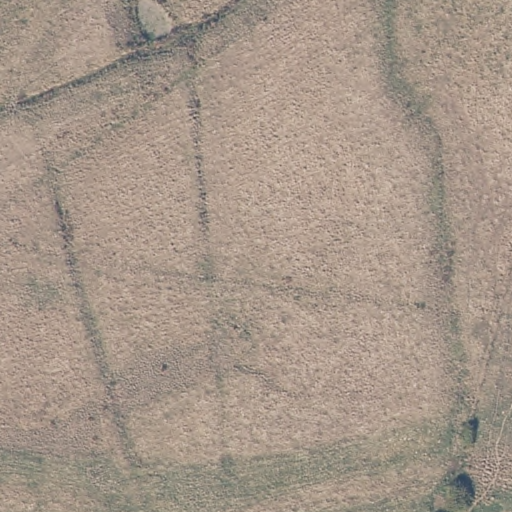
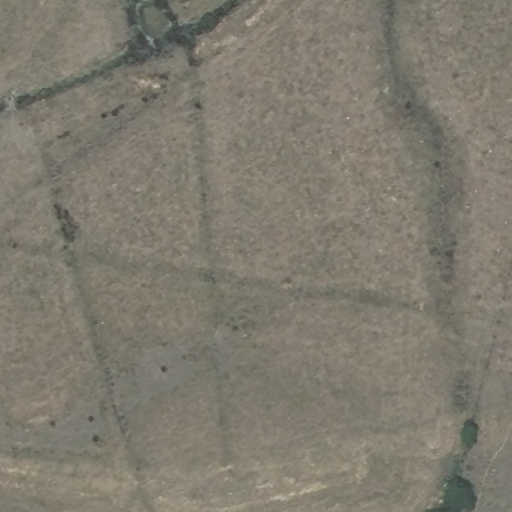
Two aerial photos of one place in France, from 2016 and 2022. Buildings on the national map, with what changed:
[]

